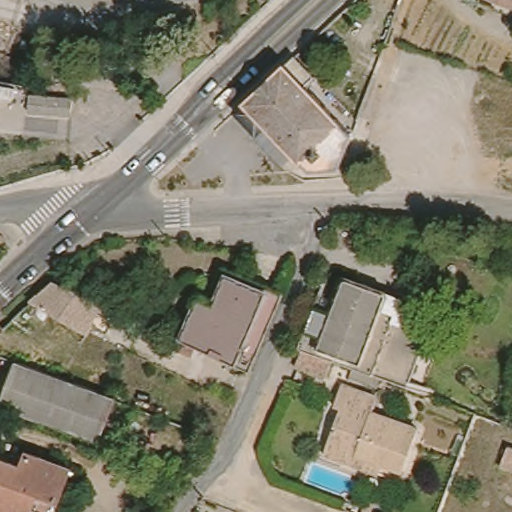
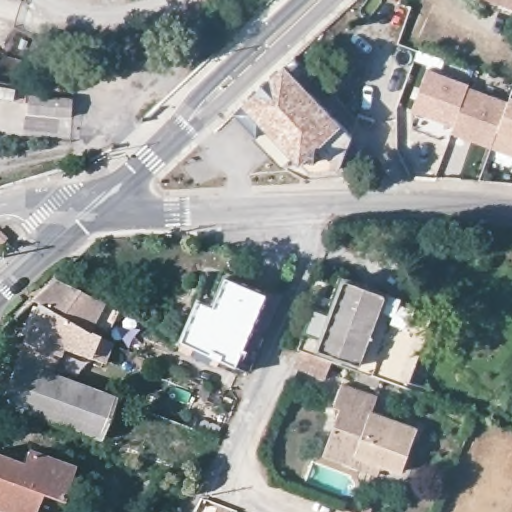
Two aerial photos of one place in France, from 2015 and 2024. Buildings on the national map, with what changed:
unchanged [(485,0),(512,0),(512,10),(485,0)]
unchanged [(235,113),(244,105),(285,67),(295,58),(316,80),(306,89),(352,138),(340,171),(338,174),(309,174),(268,130),(259,139),(235,113)]
new [(470,83),(469,88),(454,127),(413,111),(427,69),(470,83)]
new [(451,134),(469,88),(510,102),(512,96),(512,155),(451,134)]
unchanged [(72,119),(29,116),(30,97),(74,101),(72,119)]
unchanged [(214,303),(228,273),(281,296),(251,368),(182,337),(200,296),(214,303)]
unchanged [(302,363),(310,346),(309,346),(303,343),(319,302),(333,307),(344,277),(438,311),(410,384),(343,358),(335,376),(302,363)]
unchanged [(108,328),(93,322),(90,330),(29,302),(31,300),(53,279),(119,309),(108,328)]
new [(106,364),(90,357),(62,349),(59,357),(52,376),(15,362),(13,362),(23,340),(36,305),(90,330),(98,335),(114,342),(106,364)]
unchanged [(111,397),(110,400),(95,440),(0,406),(0,398),(13,362),(15,362),(111,397)]
unchanged [(324,456),(327,448),(340,410),(333,408),(341,386),(376,398),(371,414),(418,432),(404,473),(383,465),(379,476),(324,456)]
unchanged [(512,451),(512,472),(499,467),(506,448),(512,451)]
unchanged [(23,456),(44,463),(45,460),(50,462),(49,466),(71,474),(58,508),(56,512),(0,512),(0,463),(18,470),(23,456)]

